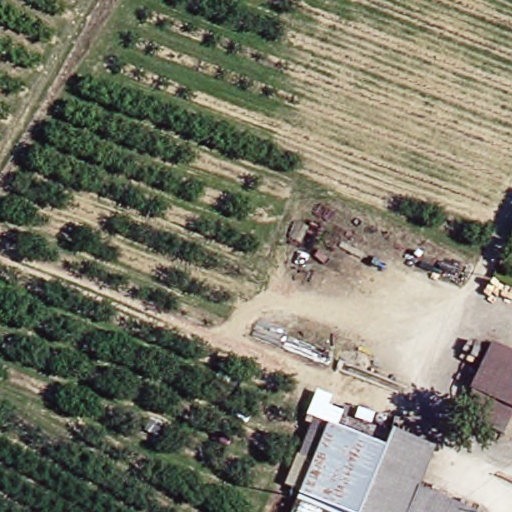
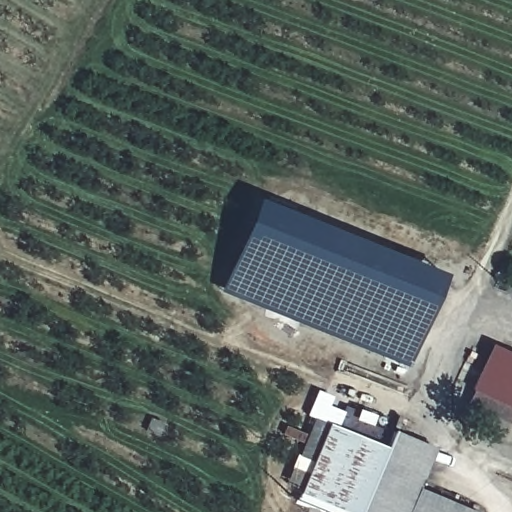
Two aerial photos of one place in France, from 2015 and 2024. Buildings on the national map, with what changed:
new [(406,367),(219,292),(255,198),(445,273),(406,367)]
unchanged [(480,376),(467,372),(480,346),(492,352),(512,360),(512,407),(473,389),(480,376)]
unchanged [(510,417),(503,441),(460,423),(468,399),(510,417)]
unchanged [(325,424),(380,445),(385,431),(430,448),(417,482),(476,506),(474,512),(324,512),(294,500),(325,424)]

